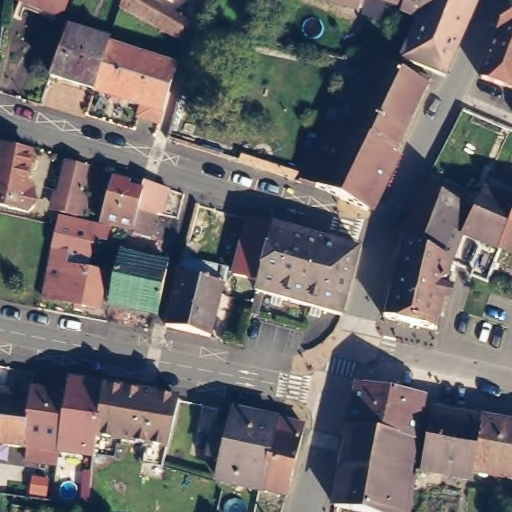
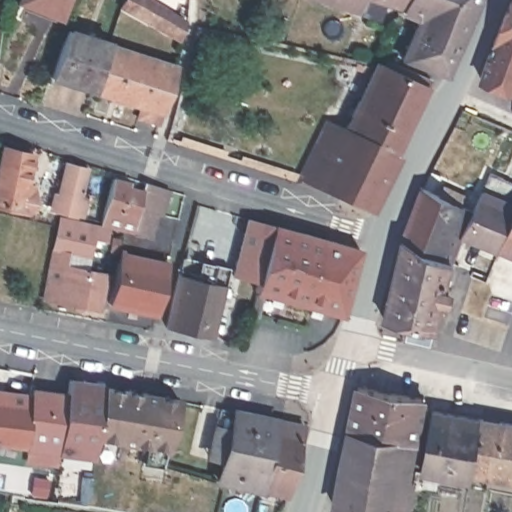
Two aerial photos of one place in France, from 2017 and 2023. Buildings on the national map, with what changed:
unchanged [(29,0),(67,0),(62,13),(29,0)]
unchanged [(123,6),(126,0),(144,0),(187,26),(184,43),(123,6)]
unchanged [(338,0),(367,0),(364,9),(338,0)]
unchanged [(403,56),(399,63),(385,56),(397,30),(412,35),(422,15),(404,7),(405,5),(406,0),(477,0),(445,74),(403,56)]
unchanged [(391,0),(406,0),(405,5),(391,0)]
unchanged [(481,76),(512,1),(512,88),(481,76)]
unchanged [(70,28),(109,43),(93,90),(52,75),(70,28)]
unchanged [(130,103),(128,100),(93,90),(109,43),(145,56),(147,54),(178,66),(162,114),(130,103)]
unchanged [(430,78),(367,209),(325,189),(299,181),(328,121),(344,130),(378,61),(382,60),(384,59),(385,56),(399,63),(430,78)]
unchanged [(25,216),(0,209),(0,189),(8,153),(37,159),(25,216)]
unchanged [(93,163),(83,202),(63,198),(73,159),(92,162),(93,163)]
unchanged [(472,208),(490,172),(490,171),(512,180),(512,215),(498,248),(462,232),(462,229),(453,226),(443,255),(402,238),(418,192),(422,185),(472,208)]
unchanged [(155,233),(140,230),(140,227),(130,225),(115,221),(118,207),(110,205),(117,179),(149,189),(145,205),(160,208),(155,233)]
unchanged [(61,199),(57,217),(37,213),(42,195),(61,199)]
unchanged [(498,248),(512,215),(512,253),(498,248)]
unchanged [(94,253),(62,245),(70,216),(115,228),(113,237),(108,257),(94,253)]
unchanged [(267,222),(272,224),(257,282),(233,276),(249,218),(267,222)]
unchanged [(272,224),(358,248),(340,315),(263,293),(257,314),(250,313),(256,292),(254,292),(257,282),(272,224)]
unchanged [(443,255),(452,259),(450,267),(437,329),(383,316),(402,240),(402,238),(443,255)]
unchanged [(163,309),(115,297),(125,250),(174,260),(163,309)]
unchanged [(80,306),(80,301),(52,294),(58,261),(63,261),(65,252),(76,254),(75,264),(111,271),(104,306),(91,303),(90,308),(80,306)]
unchanged [(228,268),(212,336),(166,325),(183,256),(228,268)]
unchanged [(72,383),(107,388),(107,392),(98,439),(95,460),(59,456),(68,403),(72,383)]
unchanged [(362,391),(372,392),(427,402),(420,446),(353,434),(362,391)]
unchanged [(180,405),(167,452),(98,439),(107,392),(180,405)]
unchanged [(32,397),(68,403),(59,456),(57,456),(24,452),(31,403),(32,397)]
unchanged [(7,400),(31,403),(24,452),(0,448),(0,404),(6,405),(7,400)]
unchanged [(277,416),(260,482),(245,478),(243,484),(232,482),(234,476),(224,474),(220,473),(228,441),(214,438),(222,404),(277,416)]
unchanged [(426,476),(436,413),(482,421),(470,483),(426,476)]
unchanged [(305,422),(287,488),(260,482),(277,416),(305,422)]
unchanged [(477,477),(476,484),(470,483),(482,421),(512,426),(512,483),(477,477)]
unchanged [(337,511),(353,434),(420,446),(412,485),(417,486),(413,512),(344,512),(337,511)]

